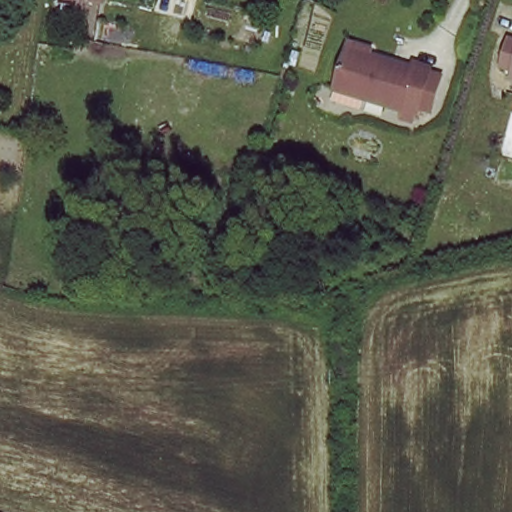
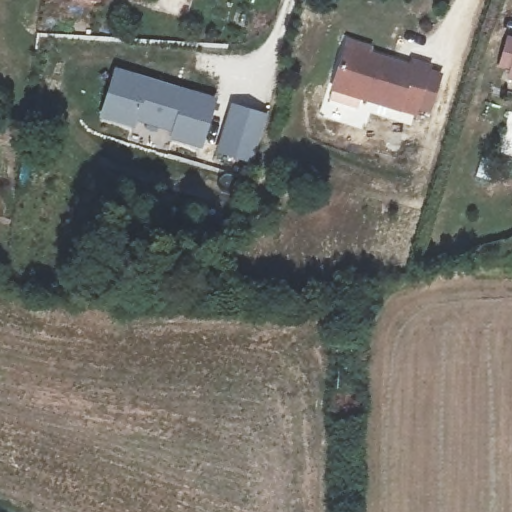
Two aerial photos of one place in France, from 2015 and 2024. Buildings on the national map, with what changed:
new [(100,3),(83,0),(100,0),(100,3)]
unchanged [(510,64),(498,59),(504,35),(512,38),(512,73),(508,71),(510,64)]
unchanged [(409,65),(411,59),(427,64),(412,110),(331,86),(344,44),(409,65)]
new [(202,147),(170,137),(172,129),(137,118),(135,128),(100,117),(115,67),(216,98),(202,147)]
new [(251,164),(216,151),(232,102),(267,113),(251,164)]

